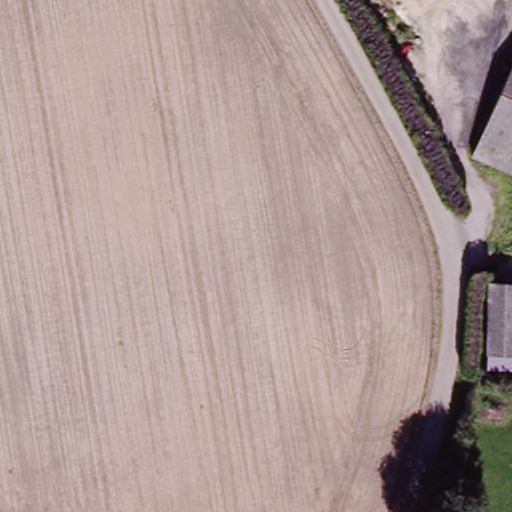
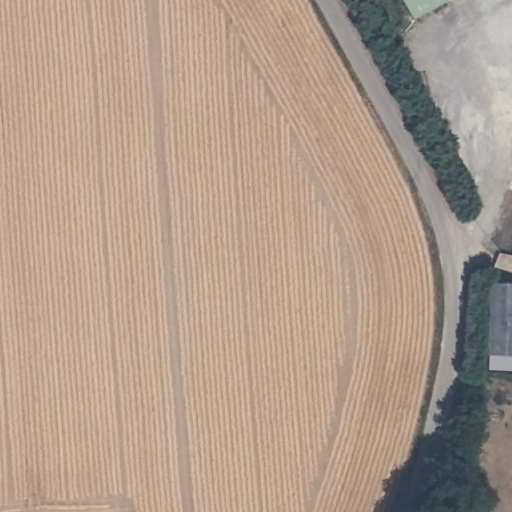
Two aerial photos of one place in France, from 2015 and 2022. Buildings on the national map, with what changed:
new [(416,14),(408,0),(445,0),(416,14)]
demolished [(470,156),(512,59),(512,175),(470,156)]
unchanged [(484,352),(484,283),(512,284),(512,369),(484,368),(484,352)]

